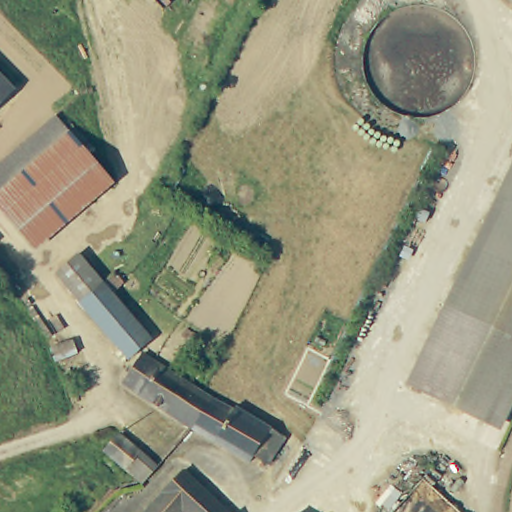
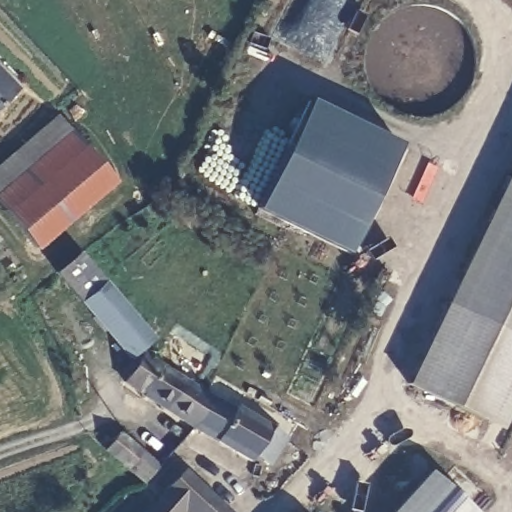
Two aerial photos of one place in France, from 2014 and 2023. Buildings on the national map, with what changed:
unchanged [(23,93),(0,112),(0,66),(23,93)]
new [(347,254),(254,212),(309,99),(398,141),(347,254)]
unchanged [(80,140),(4,211),(0,206),(0,165),(44,124),(57,114),(80,140)]
unchanged [(114,178),(38,247),(4,211),(80,140),(114,178)]
unchanged [(512,403),(507,414),(426,375),(512,194),(512,403)]
unchanged [(118,296),(131,309),(153,334),(142,345),(133,353),(42,256),(61,239),(118,296)]
unchanged [(208,424),(136,379),(152,351),(220,393),(225,396),(208,424)]
unchanged [(239,408),(244,403),(297,432),(281,460),(267,452),(262,458),(208,424),(225,396),(239,408)]
unchanged [(164,469),(153,481),(145,474),(140,469),(132,473),(113,455),(126,437),(164,469)]
unchanged [(233,512),(187,512),(186,511),(185,512),(140,512),(184,468),(233,512)]
new [(427,470),(475,512),(390,512),(427,470)]

